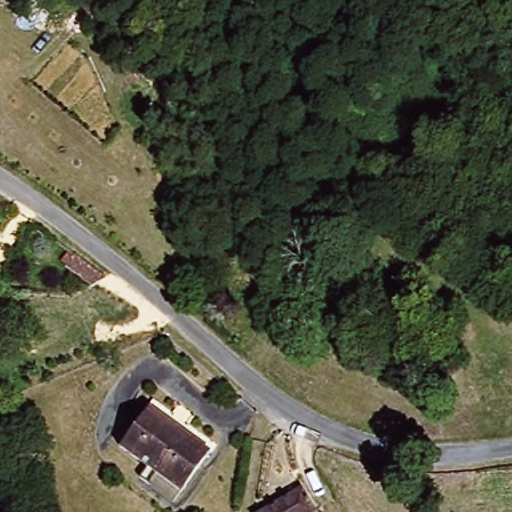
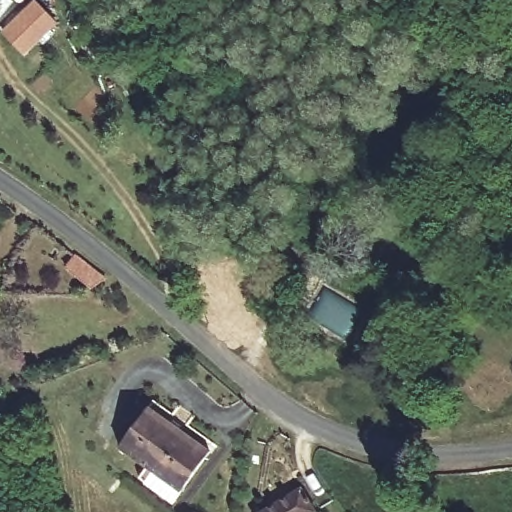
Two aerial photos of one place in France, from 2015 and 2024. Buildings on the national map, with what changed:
new [(36,0),(59,24),(25,57),(0,32),(34,0),(36,0)]
unchanged [(64,261),(74,249),(86,259),(76,271),(64,261)]
unchanged [(208,448),(175,495),(144,474),(150,467),(120,446),(150,407),(208,448)]
unchanged [(302,489),(314,512),(260,512),(302,489)]

